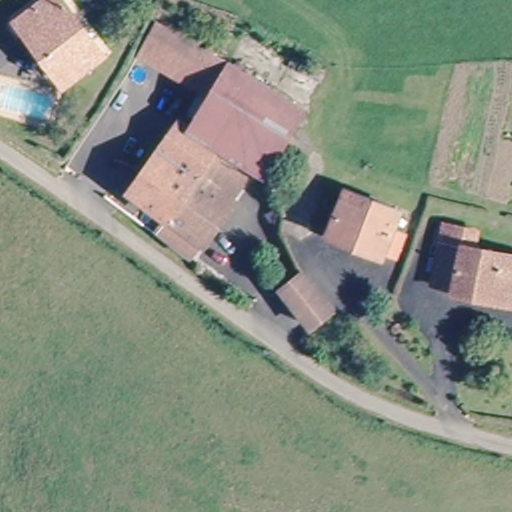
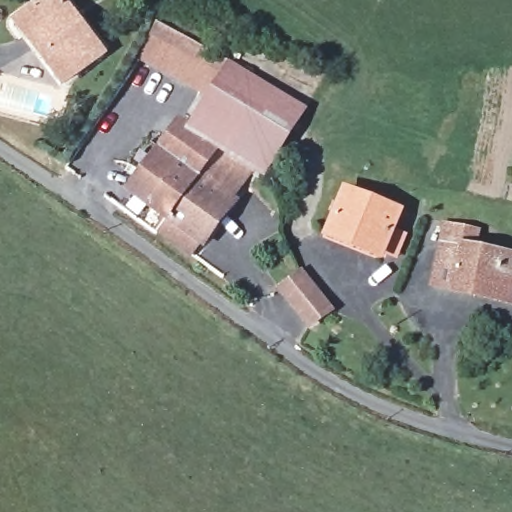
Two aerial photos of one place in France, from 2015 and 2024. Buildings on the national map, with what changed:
unchanged [(41,0),(61,0),(100,51),(57,82),(12,20),(41,0)]
unchanged [(137,59),(155,22),(224,63),(203,96),(137,59)]
unchanged [(177,140),(187,127),(229,79),(299,137),(245,200),(241,196),(223,178),(198,158),(177,140)]
unchanged [(223,178),(241,196),(220,223),(202,247),(167,219),(117,180),(137,156),(153,169),(165,155),(195,179),(212,192),(223,178)]
unchanged [(397,262),(375,256),(322,242),(336,195),(388,210),(382,231),(403,237),(397,262)]
unchanged [(465,302),(465,295),(430,294),(432,234),(463,234),(462,254),(512,255),(512,304),(465,302)]
unchanged [(303,334),(299,326),(282,294),(309,279),(311,282),(330,319),(303,334)]

